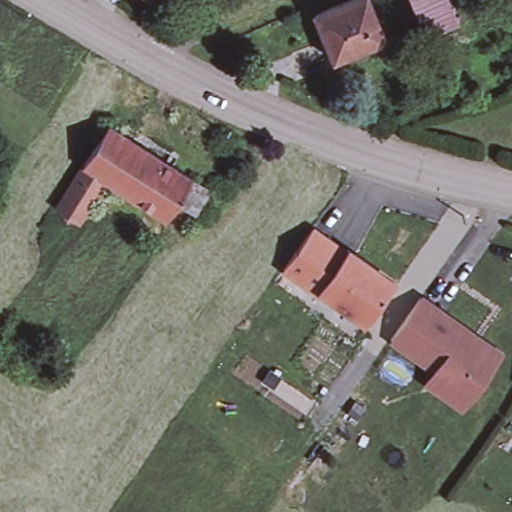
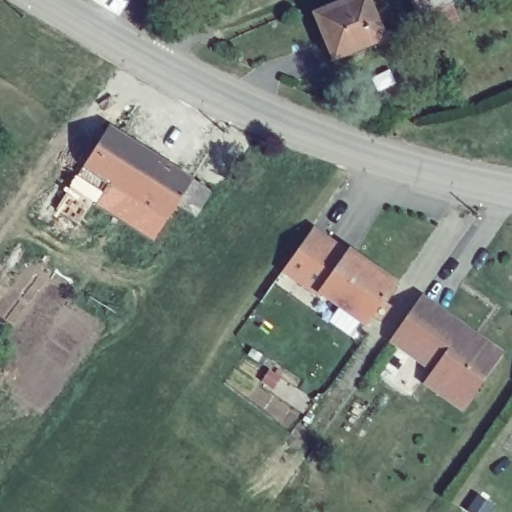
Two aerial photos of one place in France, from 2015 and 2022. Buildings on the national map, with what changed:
unchanged [(167,12),(158,5),(157,6),(151,0),(176,0),(167,12)]
unchanged [(386,37),(334,58),(328,44),(315,11),(344,0),(370,0),(380,24),(386,37)]
unchanged [(427,33),(417,9),(413,0),(451,0),(460,20),(427,33)]
unchanged [(107,180),(92,204),(97,207),(92,214),(87,211),(79,224),(57,210),(113,125),(164,159),(137,199),(107,180)]
unchanged [(197,216),(178,204),(169,219),(137,199),(164,159),(195,179),(213,191),(197,216)]
unchanged [(312,226),(346,250),(347,247),(386,275),(394,280),(365,322),(357,317),(319,289),(317,292),(283,267),(312,225),(312,226)]
unchanged [(423,381),(432,368),(426,363),(390,338),(420,295),(455,320),(502,352),(472,395),(462,408),(423,381)]

